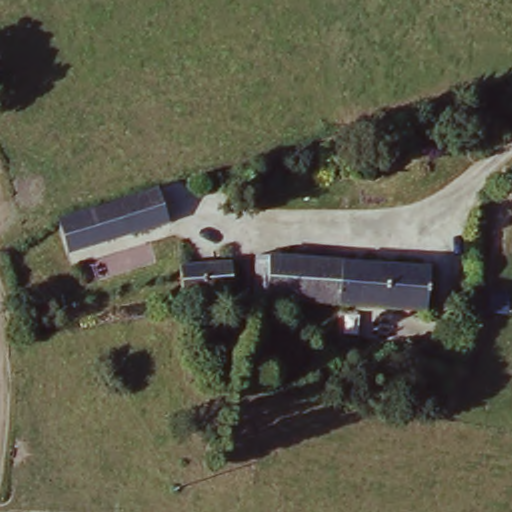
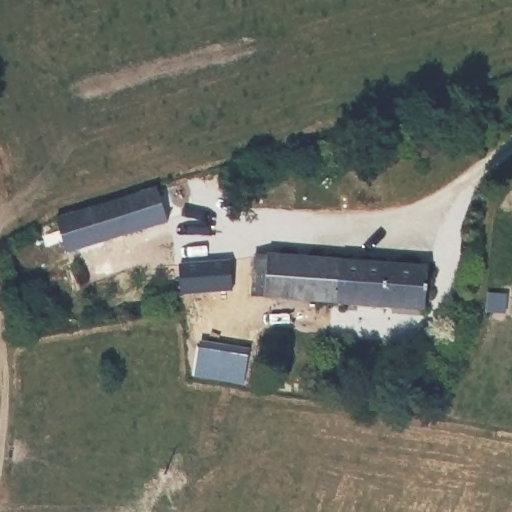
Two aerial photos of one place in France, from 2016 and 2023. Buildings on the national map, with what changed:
unchanged [(164,219),(66,249),(59,222),(99,200),(155,184),(164,219)]
unchanged [(427,263),(424,306),(259,296),(263,254),(427,263)]
unchanged [(183,302),(180,273),(224,266),(228,268),(232,296),(183,302)]
new [(200,351),(249,357),(246,382),(197,375),(200,351)]

